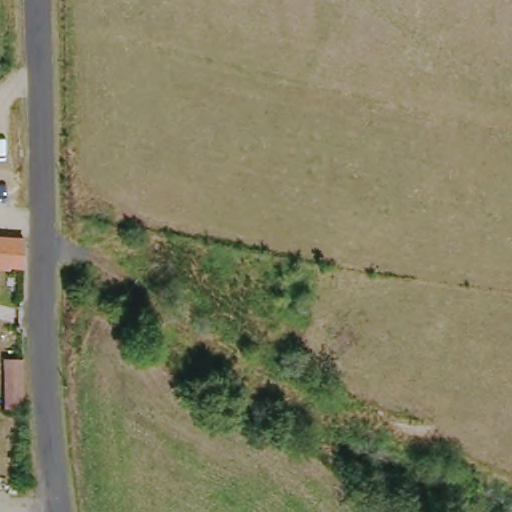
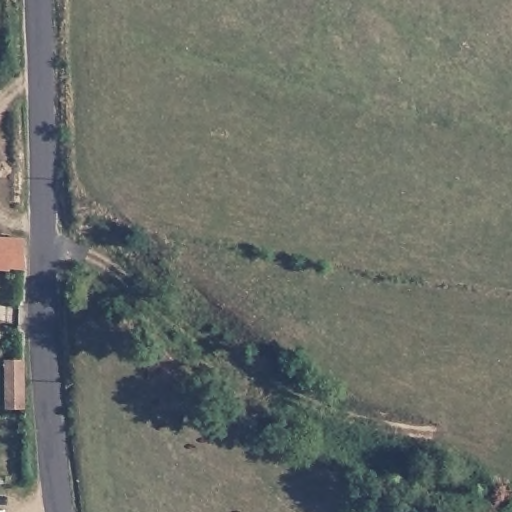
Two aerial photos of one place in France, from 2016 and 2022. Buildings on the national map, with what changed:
unchanged [(15,240),(16,265),(0,266),(0,240),(15,240)]
unchanged [(6,402),(6,360),(19,359),(19,362),(20,402),(6,402)]

